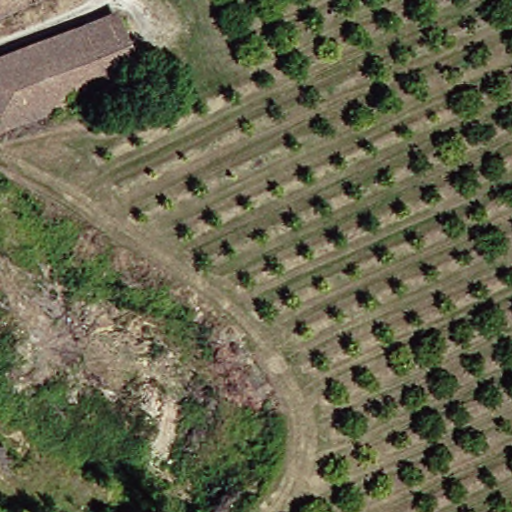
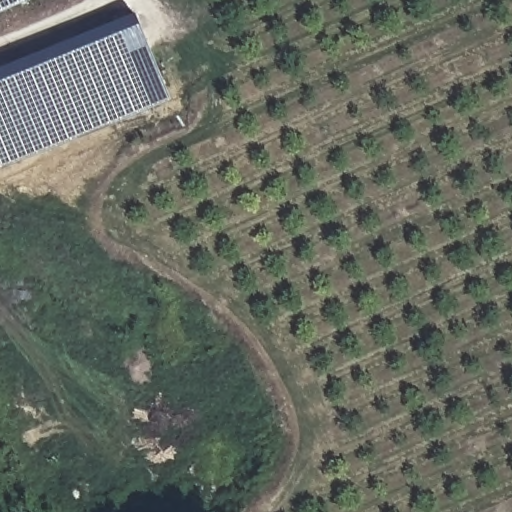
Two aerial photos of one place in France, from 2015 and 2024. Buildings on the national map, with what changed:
new [(0,0),(31,0),(0,14),(0,0)]
new [(0,70),(136,15),(170,100),(1,168),(0,164),(0,70)]
demolished [(81,118),(73,103),(0,131),(0,61),(94,26),(120,101),(81,118)]

